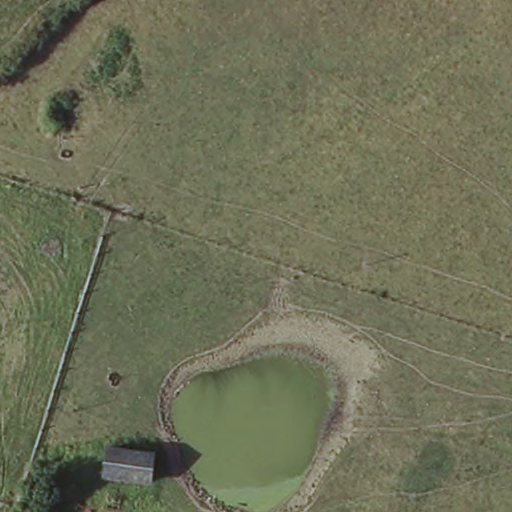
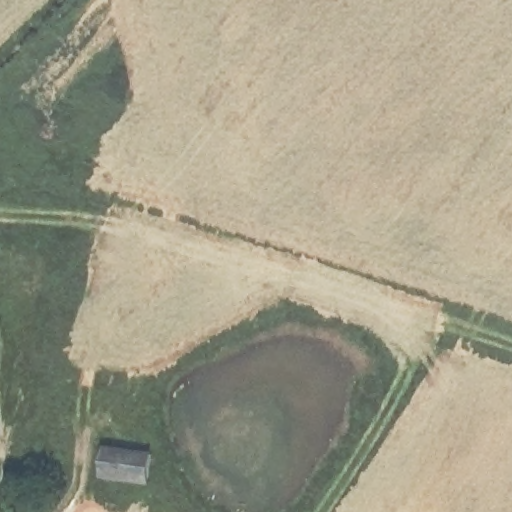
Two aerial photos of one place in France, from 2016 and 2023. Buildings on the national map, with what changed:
unchanged [(100,444),(155,454),(150,489),(96,479),(100,444)]

